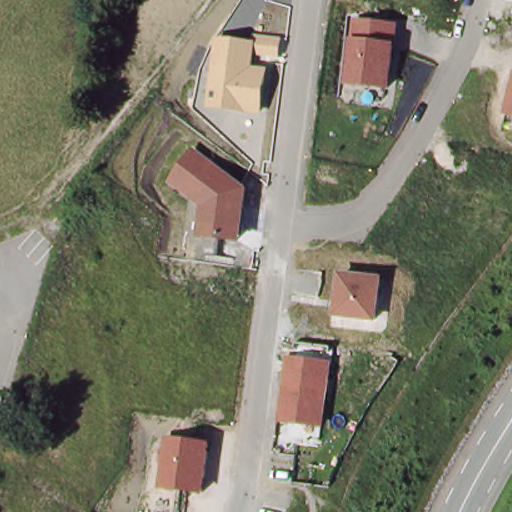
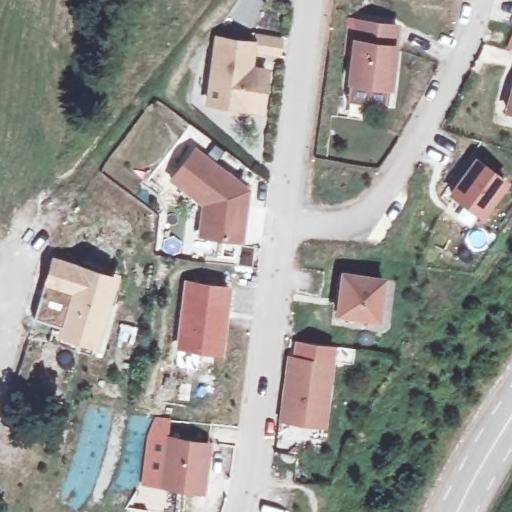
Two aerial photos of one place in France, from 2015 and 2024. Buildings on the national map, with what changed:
unchanged [(395,89),(350,84),(356,18),(400,24),(395,89)]
unchanged [(205,110),(215,37),(251,40),(252,33),(282,37),(281,55),(255,53),(253,66),(270,69),(261,117),(205,110)]
unchanged [(506,111),(512,91),(512,113),(506,111)]
unchanged [(203,233),(207,204),(175,179),(198,150),(235,177),(233,181),(245,190),(239,237),(203,233)]
new [(477,161),(506,182),(482,216),(453,195),(477,161)]
new [(53,261),(113,278),(95,343),(53,330),(55,324),(36,318),(53,261)]
unchanged [(380,322),(337,317),(342,270),(387,275),(380,322)]
new [(182,278),(230,284),(222,354),(175,350),(182,278)]
unchanged [(326,425),(280,423),(289,356),(331,362),(326,425)]
unchanged [(205,494),(161,487),(166,436),(211,440),(205,494)]

